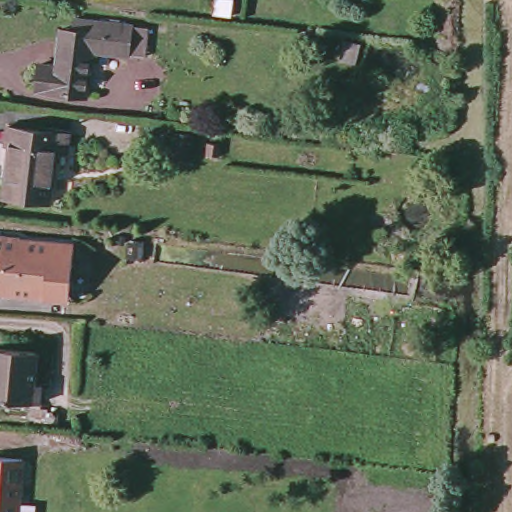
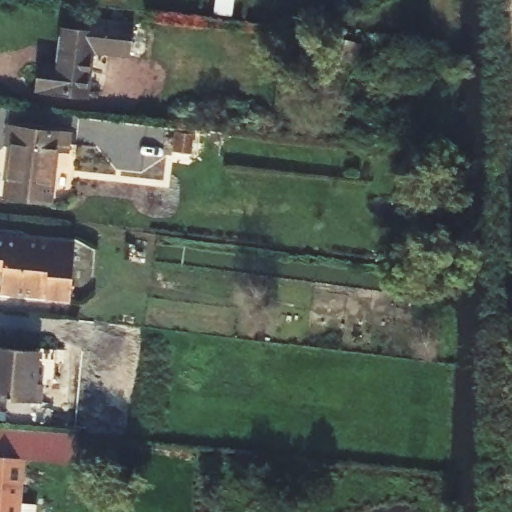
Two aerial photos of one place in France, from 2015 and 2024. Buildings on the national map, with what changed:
unchanged [(214,15),(216,0),(230,0),(234,1),(231,17),(214,15)]
unchanged [(40,65),(55,66),(60,30),(72,31),(74,17),(149,28),(145,57),(130,54),(130,57),(95,52),(87,98),(36,91),(40,65)]
unchanged [(11,146),(5,145),(7,126),(72,134),(69,152),(57,150),(50,202),(5,197),(11,146)]
unchanged [(175,163),(175,161),(176,153),(174,152),(176,132),(193,135),(190,155),(189,155),(187,165),(175,163)]
unchanged [(0,290),(3,268),(0,268),(0,232),(22,235),(21,237),(75,243),(69,297),(0,290)]
unchanged [(33,382),(42,383),(41,403),(0,400),(0,347),(37,351),(33,382)]
new [(0,456),(0,429),(76,435),(75,463),(0,456)]
unchanged [(0,457),(23,459),(19,512),(0,512),(0,457)]

